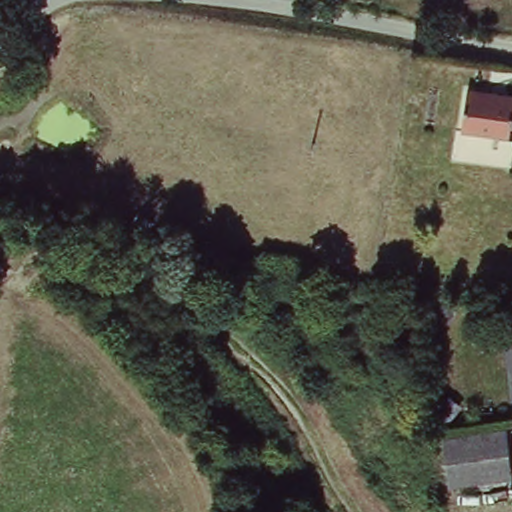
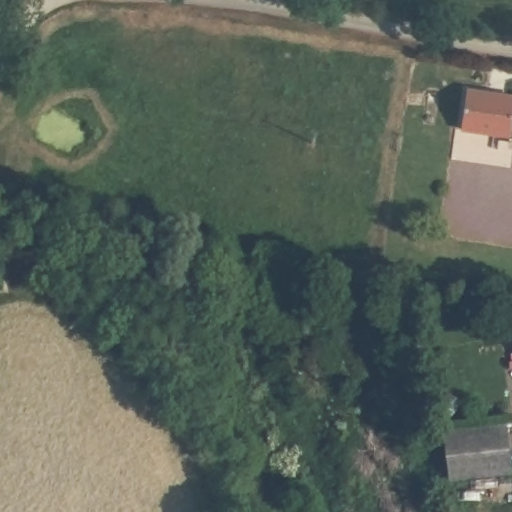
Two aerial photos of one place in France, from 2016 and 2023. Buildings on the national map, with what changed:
unchanged [(464,89),(511,96),(507,135),(459,127),(464,89)]
unchanged [(507,424),(510,473),(449,479),(444,432),(507,424)]

